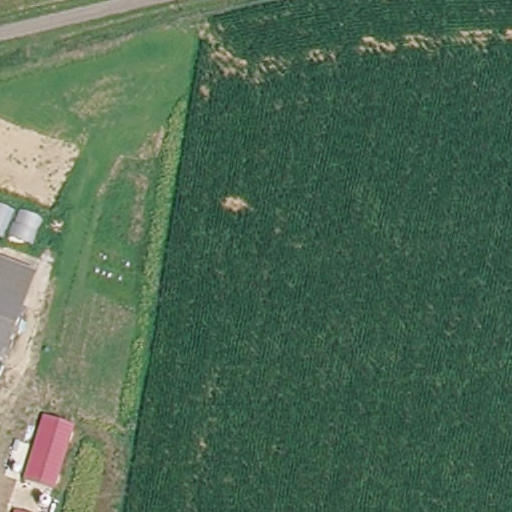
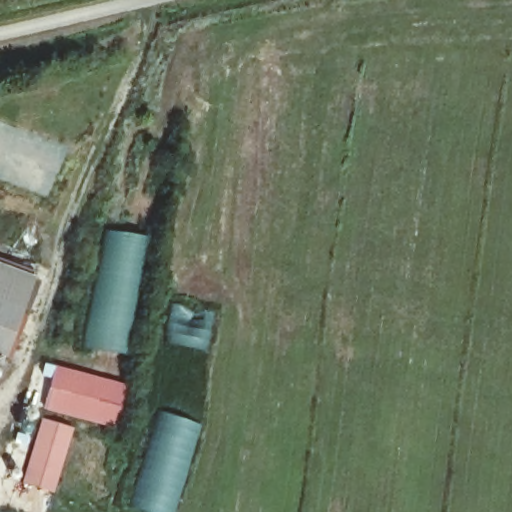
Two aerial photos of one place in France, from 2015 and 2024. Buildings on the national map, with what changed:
new [(151,237),(131,356),(82,347),(103,230),(151,237)]
unchanged [(25,275),(20,301),(11,350),(0,348),(0,269),(25,275)]
new [(217,312),(210,352),(161,343),(170,302),(217,312)]
new [(136,386),(125,430),(45,410),(56,366),(136,386)]
new [(150,512),(137,508),(162,422),(170,424),(172,416),(201,424),(187,473),(180,471),(167,512),(150,512)]
unchanged [(74,427),(53,490),(24,481),(42,417),(74,427)]

